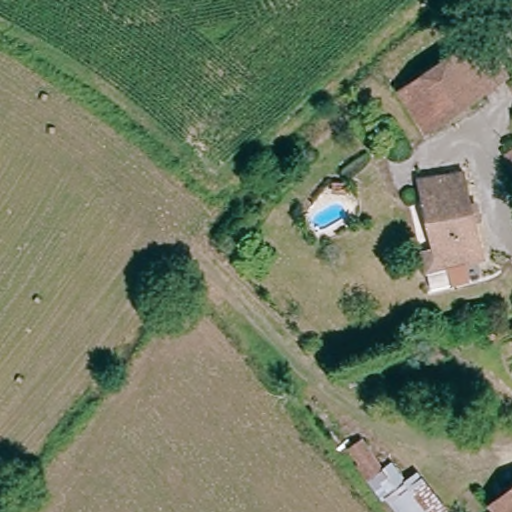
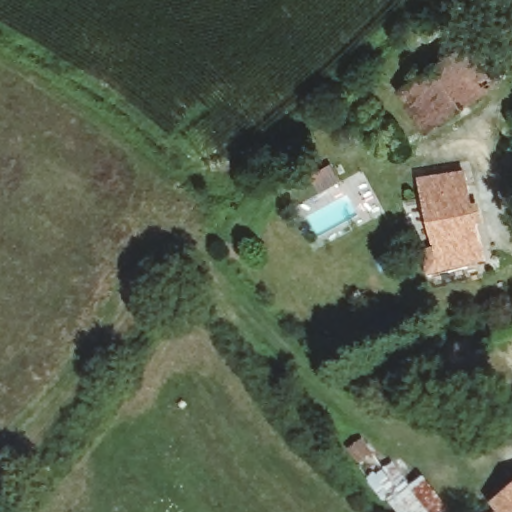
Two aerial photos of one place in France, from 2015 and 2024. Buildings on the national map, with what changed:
unchanged [(475,41),(488,61),(502,82),(436,129),(405,90),(475,41)]
unchanged [(478,261),(431,273),(426,254),(439,251),(422,185),(465,173),(473,206),(479,204),(482,217),(477,219),(483,246),(487,259),(478,261)]
unchanged [(397,512),(357,463),(375,454),(385,468),(390,462),(413,485),(425,474),(451,511),(450,512),(397,512)]
unchanged [(512,493),(512,512),(496,512),(493,507),(512,493)]

